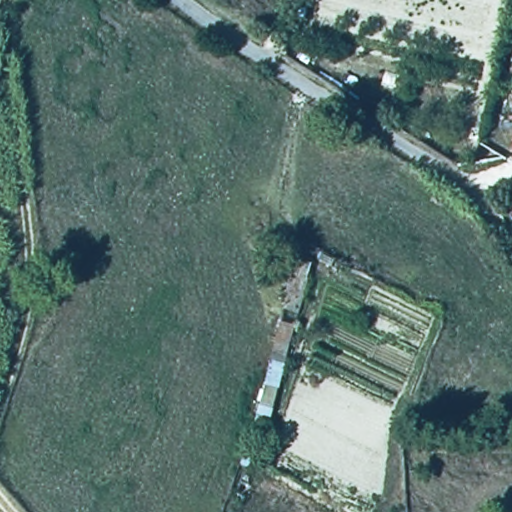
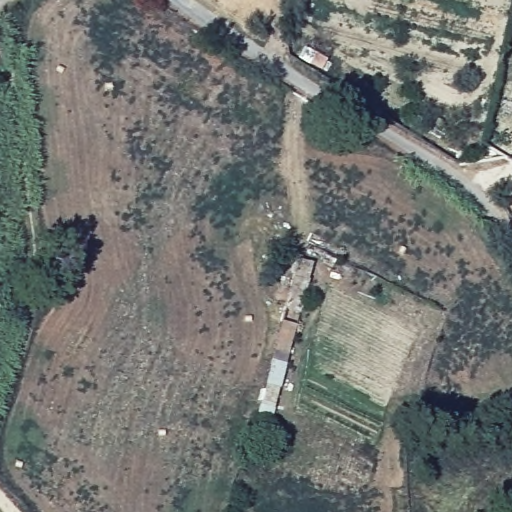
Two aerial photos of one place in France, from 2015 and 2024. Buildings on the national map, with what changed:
unchanged [(297,258),(316,263),(299,318),(282,309),(297,258)]

